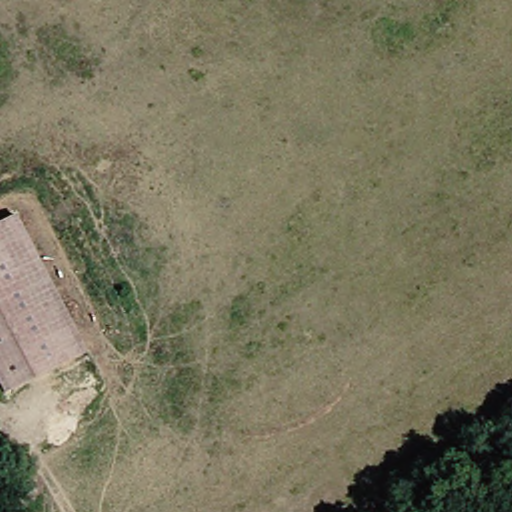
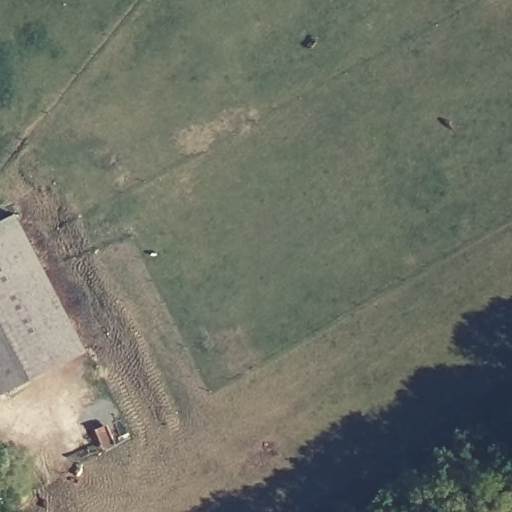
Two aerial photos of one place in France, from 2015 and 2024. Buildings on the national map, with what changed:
unchanged [(91,351),(7,393),(0,379),(0,222),(18,213),(91,351)]

